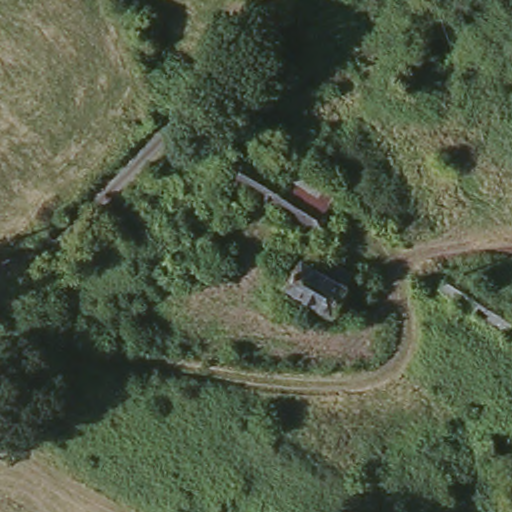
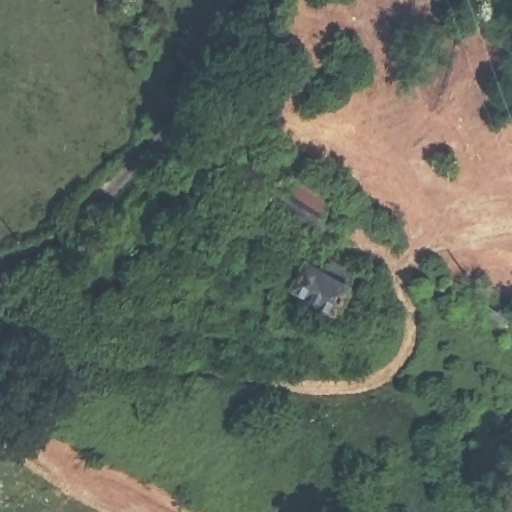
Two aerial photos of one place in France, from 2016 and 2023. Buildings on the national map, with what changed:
unchanged [(286,184),(299,162),(341,190),(315,231),(232,177),(244,157),(286,184)]
unchanged [(329,312),(290,285),(306,261),(328,274),(334,263),(352,274),(329,312)]
unchanged [(512,309),(512,335),(443,291),(455,271),(512,309)]

